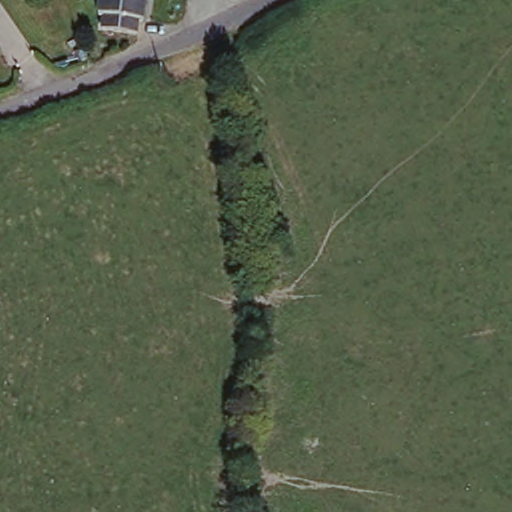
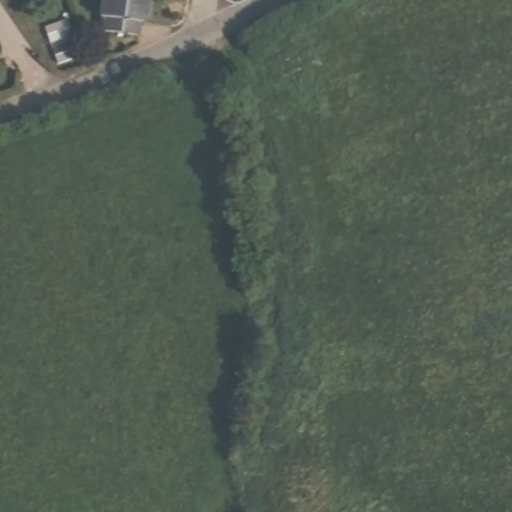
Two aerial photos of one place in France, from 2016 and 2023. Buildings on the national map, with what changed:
unchanged [(137,18),(136,31),(104,27),(106,14),(101,13),(102,0),(146,0),(144,19),(137,18)]

